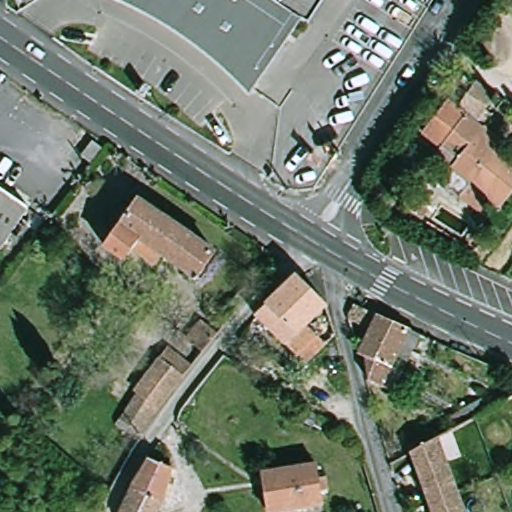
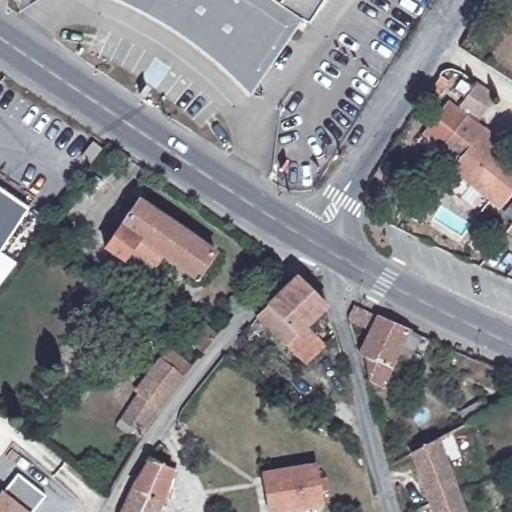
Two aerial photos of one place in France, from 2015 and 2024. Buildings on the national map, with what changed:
unchanged [(309,23),(300,17),(250,89),(246,85),(241,80),(218,59),(209,51),(193,39),(188,36),(181,30),(156,15),(133,2),(127,0),(324,0),(309,23)]
unchanged [(447,81),(438,95),(429,88),(433,81),(437,75),(447,81)]
unchanged [(485,90),(495,96),(479,121),(459,107),(475,83),(485,90)]
unchanged [(483,128),(500,141),(499,143),(507,149),(502,155),(512,164),(512,193),(500,208),(490,201),(480,214),(441,183),(451,170),(434,156),(440,149),(422,134),(447,102),(482,129),(483,128)]
unchanged [(87,167),(77,159),(89,144),(99,151),(87,167)]
unchanged [(102,183),(93,196),(85,191),(94,178),(102,183)]
unchanged [(31,208),(4,249),(2,247),(0,251),(0,188),(31,208)]
unchanged [(140,246),(132,257),(113,244),(146,196),(223,249),(203,278),(168,254),(163,262),(140,246)]
unchanged [(415,203),(429,211),(423,220),(409,211),(415,203)]
unchanged [(296,277),(327,306),(307,327),(326,346),(305,365),(257,317),(255,316),(296,277)]
unchanged [(228,303),(246,283),(255,291),(242,305),(237,311),(228,303)]
unchanged [(399,391),(373,380),(369,357),(364,355),(375,329),(352,318),(359,305),(383,316),(414,330),(425,335),(399,391)]
unchanged [(206,348),(201,354),(186,342),(201,324),(216,335),(206,348)]
unchanged [(123,420),(140,396),(140,387),(171,346),(196,366),(161,410),(146,436),(123,420)]
unchanged [(489,410),(474,418),(464,424),(458,413),(484,399),(489,410)]
unchanged [(465,512),(432,512),(410,453),(437,438),(465,512)]
unchanged [(168,501),(165,500),(159,512),(120,512),(132,487),(149,459),(177,471),(168,501)]
unchanged [(318,479),(326,478),(328,490),(320,492),(323,506),(285,512),(269,512),(262,473),(316,465),(318,479)]
new [(5,493),(18,476),(44,496),(33,512),(0,512),(0,492),(1,491),(5,493)]

